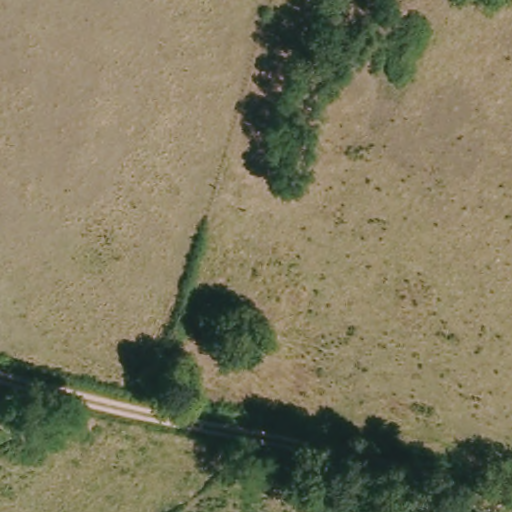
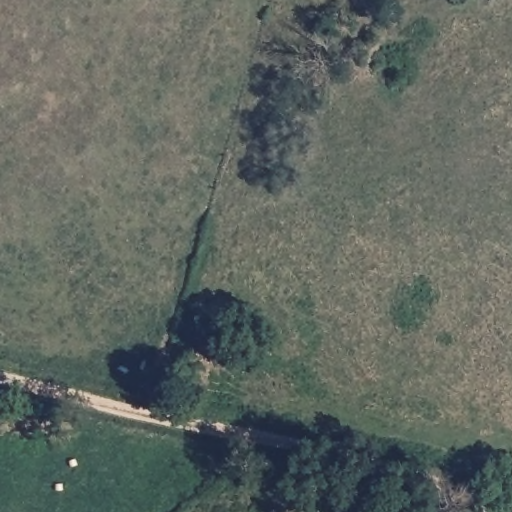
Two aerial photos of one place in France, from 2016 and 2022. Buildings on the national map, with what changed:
unchanged [(16,405),(34,406),(28,427),(15,428),(16,405)]

